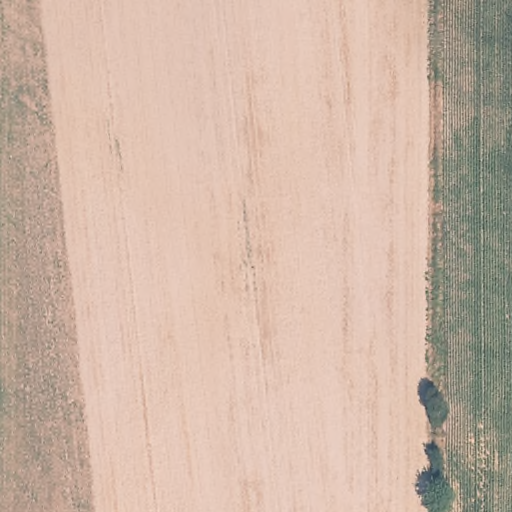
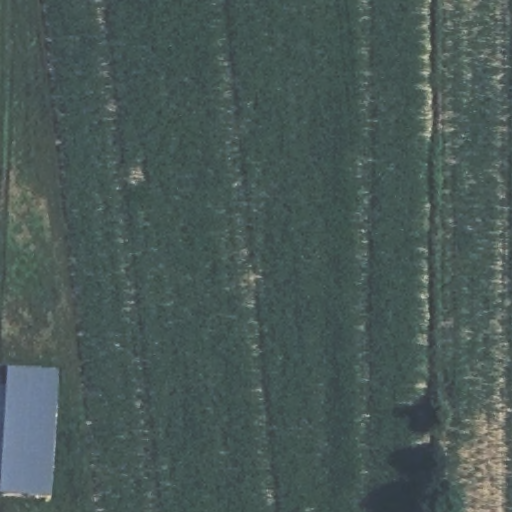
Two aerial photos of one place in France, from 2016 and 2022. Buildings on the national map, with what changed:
new [(6,366),(60,369),(53,496),(0,493),(0,455),(6,366)]

